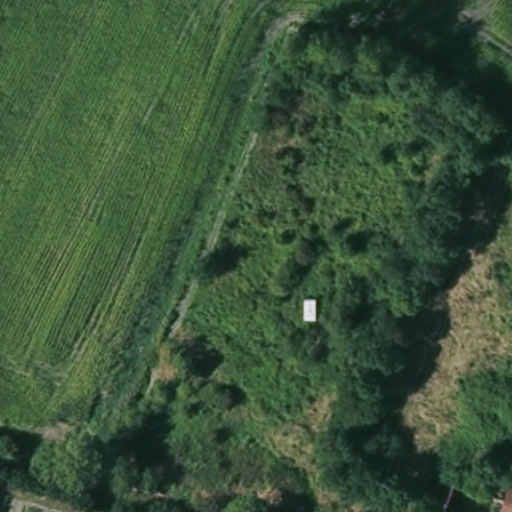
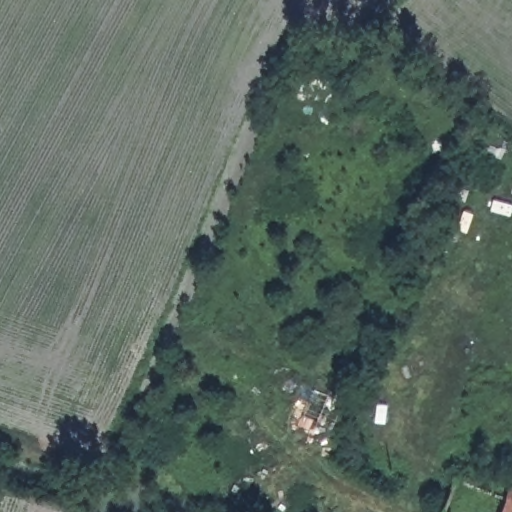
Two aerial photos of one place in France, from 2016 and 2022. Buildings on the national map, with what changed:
unchanged [(476,489),(485,470),(512,477),(512,512),(441,512),(451,481),(476,489)]

